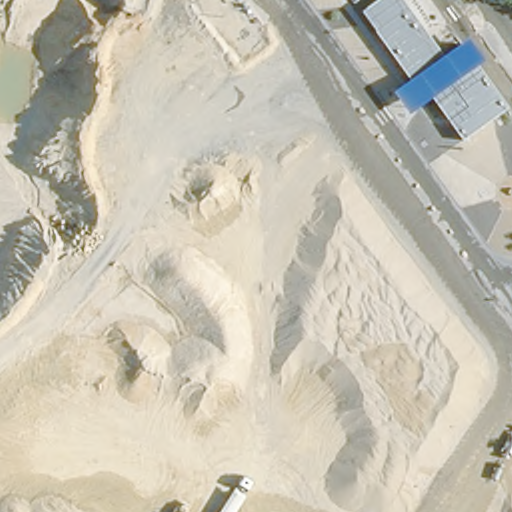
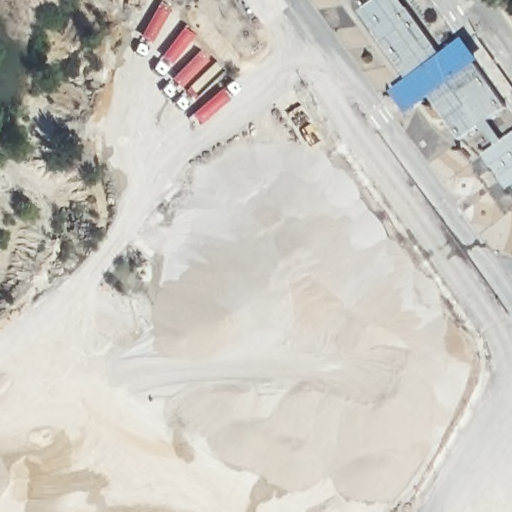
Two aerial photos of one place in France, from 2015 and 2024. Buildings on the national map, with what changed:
unchanged [(410,77),(365,11),(381,0),(404,0),(442,55),(468,37),(487,63),(479,68),(508,108),(463,138),(435,96),(410,114),(392,90),(410,77)]
new [(483,154),(496,146),(492,140),(499,135),(504,143),(512,137),(512,188),(508,190),(483,154)]

